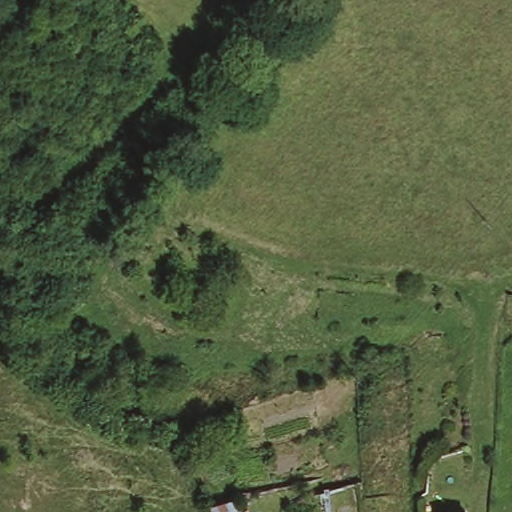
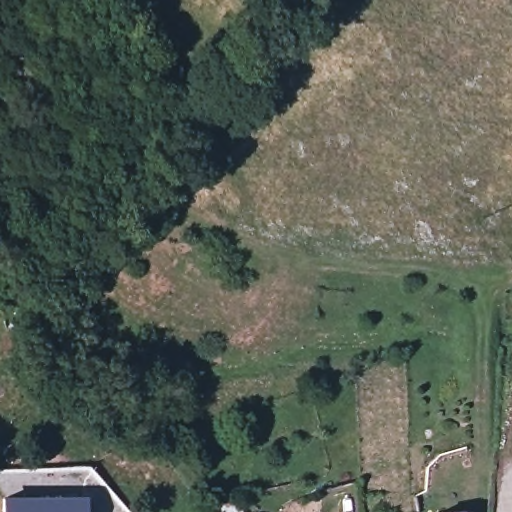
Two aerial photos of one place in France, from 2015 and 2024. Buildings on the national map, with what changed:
new [(84,512),(0,512),(0,494),(84,494),(84,512)]
unchanged [(433,512),(433,509),(440,508),(461,507),(461,512),(433,512)]

